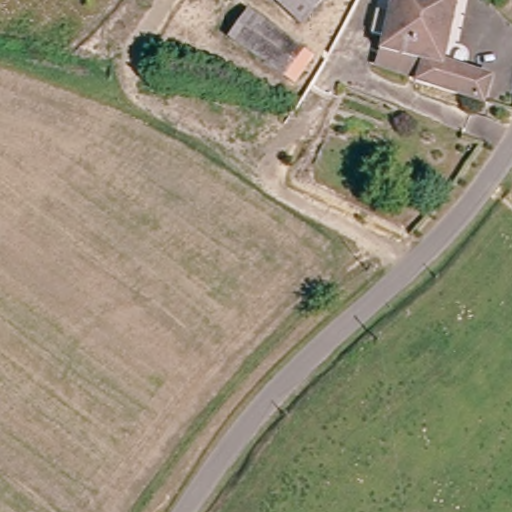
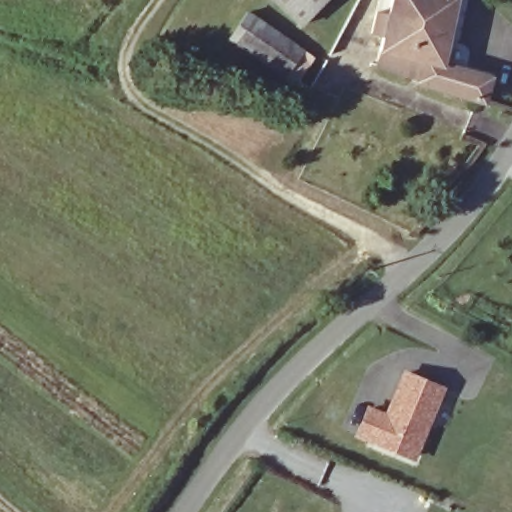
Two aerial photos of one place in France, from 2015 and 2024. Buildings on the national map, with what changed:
unchanged [(267,0),(326,0),(297,30),(267,0)]
unchanged [(383,38),(368,33),(373,10),(389,13),(392,0),(458,0),(443,63),(489,76),(483,100),(418,86),(375,77),(377,66),(380,52),(383,38)]
unchanged [(304,51),(283,82),(222,39),(244,8),(304,51)]
new [(386,420),(408,370),(442,385),(435,401),(438,402),(415,454),(378,438),(353,427),(361,409),(386,420)]

